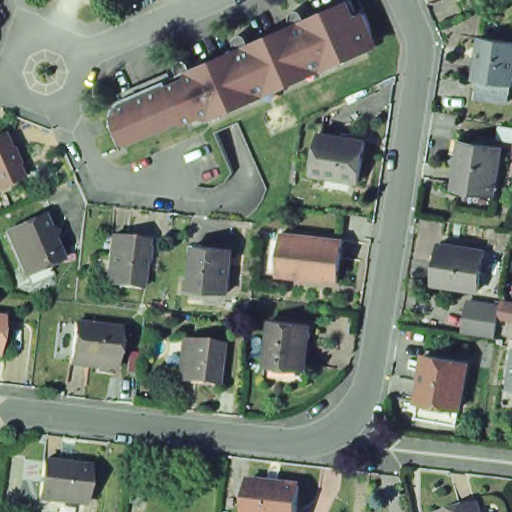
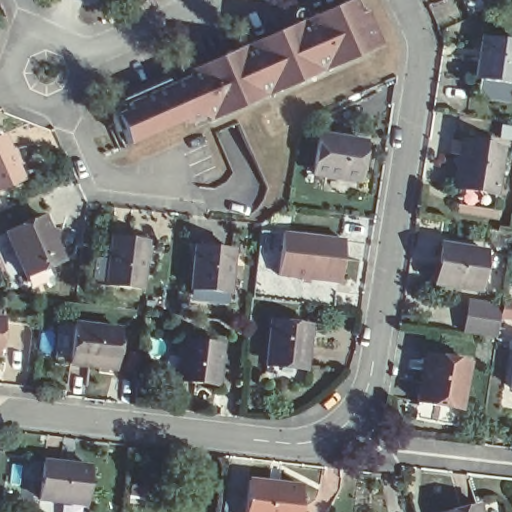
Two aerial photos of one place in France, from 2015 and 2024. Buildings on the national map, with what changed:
unchanged [(317,71),(315,64),(303,70),(306,76),(273,90),(271,84),(260,89),(263,95),(261,96),(258,90),(247,94),(250,101),(219,114),(216,107),(204,113),(206,120),(205,120),(202,114),(180,124),(178,119),(123,144),(117,130),(113,131),(105,113),(106,107),(108,104),(113,100),(161,79),(165,86),(197,71),(195,64),(227,50),(230,57),(255,46),(252,40),(285,25),(287,31),(312,21),(310,15),(341,1),(348,16),(362,10),(367,22),(370,40),(359,45),(362,52),(330,65),(328,59),(317,64),(320,70),(317,71)]
unchanged [(481,36),(512,40),(512,80),(511,82),(475,77),(481,36)]
unchanged [(23,179),(0,189),(0,137),(5,135),(23,179)]
unchanged [(367,142),(361,182),(314,174),(321,135),(367,142)]
unchanged [(476,191),(456,187),(459,168),(455,160),(460,154),(462,140),(468,141),(502,146),(495,188),(495,193),(476,191)]
unchanged [(46,220),(50,231),(59,236),(56,246),(63,263),(27,279),(10,235),(46,220)]
unchanged [(281,231),(340,239),(335,281),(275,274),(281,231)]
unchanged [(148,240),(142,288),(108,284),(113,236),(148,240)]
unchanged [(448,241),(490,248),(484,285),(442,278),(448,241)]
unchanged [(230,251),(225,293),(188,289),(193,247),(230,251)]
unchanged [(469,298),(501,304),(502,297),(512,299),(512,317),(500,314),(496,334),(465,328),(469,298)]
unchanged [(265,373),(268,355),(272,315),(310,319),(306,359),(305,359),(302,377),(265,373)]
unchanged [(0,355),(0,318),(5,319),(0,355)]
unchanged [(116,329),(111,368),(67,362),(72,323),(116,329)]
unchanged [(223,345),(217,385),(177,379),(183,340),(223,345)]
unchanged [(416,417),(420,400),(425,370),(418,369),(420,359),(426,359),(427,355),(469,362),(461,408),(458,423),(416,417)]
unchanged [(86,465),(82,502),(36,496),(41,459),(86,465)]
unchanged [(297,512),(246,512),(250,478),(300,484),(297,512)]
unchanged [(486,512),(453,512),(483,502),(486,512)]

